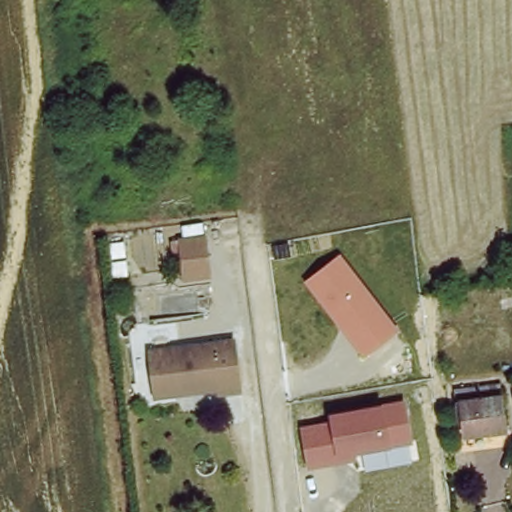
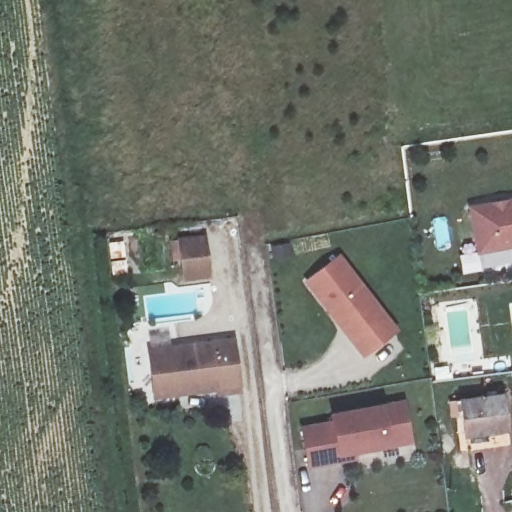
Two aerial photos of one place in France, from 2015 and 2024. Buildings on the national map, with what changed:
new [(477,256),(468,207),(512,199),(512,249),(477,256)]
unchanged [(179,254),(172,254),(170,241),(205,235),(211,280),(183,283),(179,254)]
unchanged [(340,254),(399,331),(363,358),(306,282),(340,254)]
unchanged [(228,343),(239,394),(224,396),(222,391),(199,393),(198,386),(172,389),(174,394),(155,396),(146,350),(228,343)]
unchanged [(500,393),(510,430),(467,434),(458,400),(500,393)]
unchanged [(330,422),(329,414),(405,399),(411,442),(357,454),(357,462),(307,470),(299,428),(330,422)]

